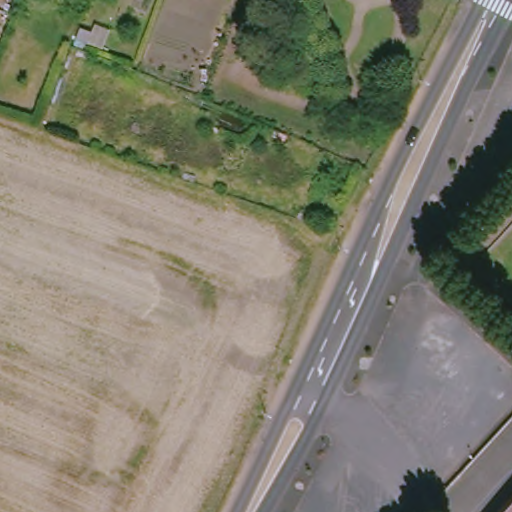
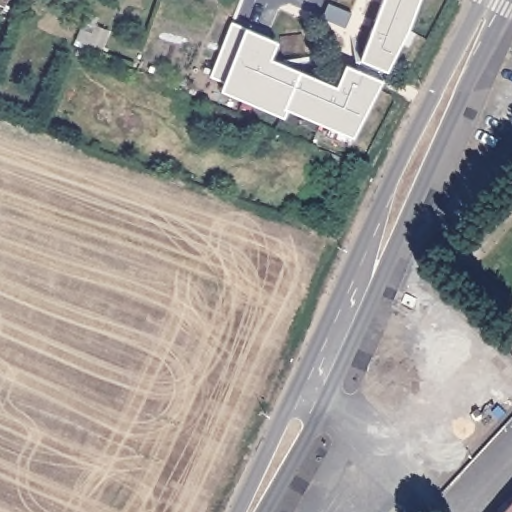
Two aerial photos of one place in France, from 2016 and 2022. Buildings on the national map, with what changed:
new [(419,0),(389,71),(362,58),(383,0),(419,0)]
new [(277,44),(271,63),(337,89),(345,67),(381,83),(355,139),(290,113),(285,121),(223,93),(227,86),(210,79),(232,24),(277,44)]
unchanged [(427,511),(429,512),(426,512),(427,511)]

